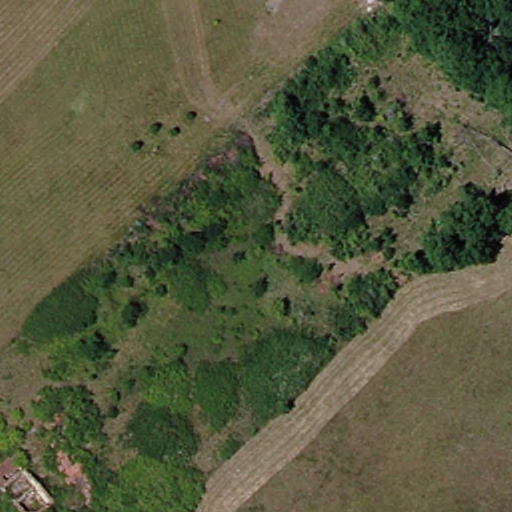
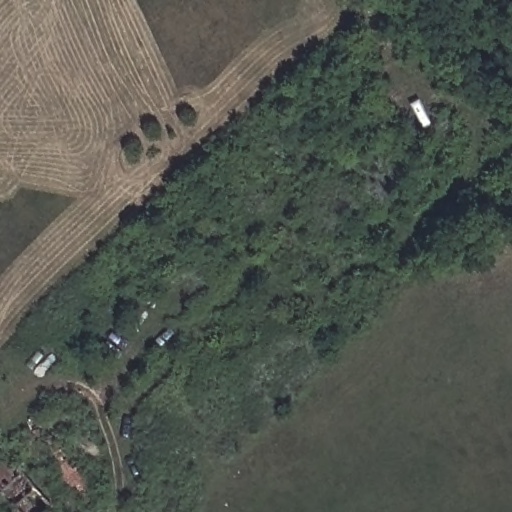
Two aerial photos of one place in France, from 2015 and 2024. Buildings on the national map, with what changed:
unchanged [(54,512),(21,512),(9,499),(0,488),(0,479),(18,462),(60,507),(54,512)]

